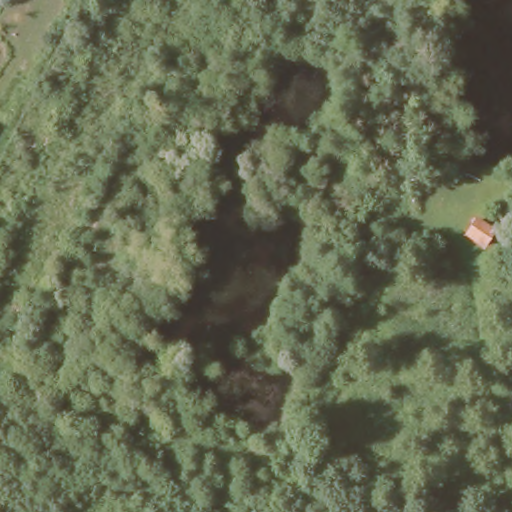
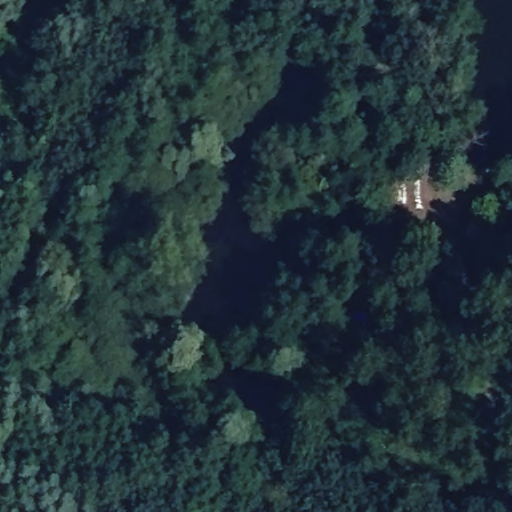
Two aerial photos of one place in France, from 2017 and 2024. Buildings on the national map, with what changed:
unchanged [(483,176),(476,187),(461,178),(467,167),(483,176)]

